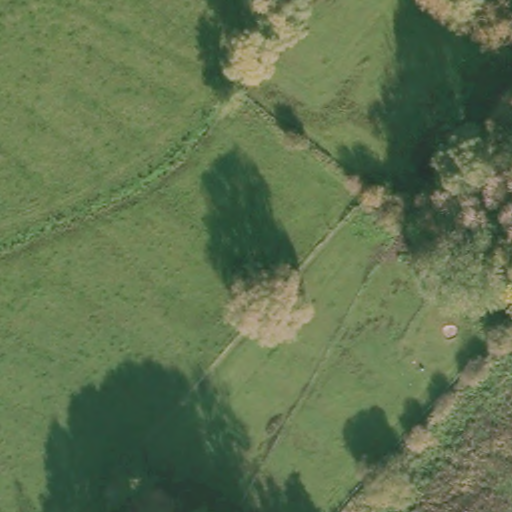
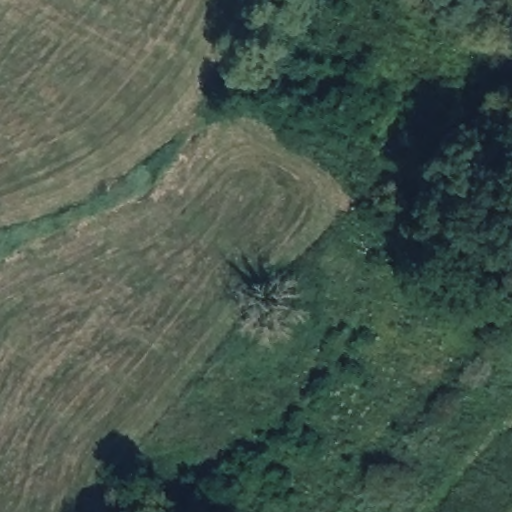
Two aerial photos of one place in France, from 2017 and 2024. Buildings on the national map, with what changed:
unchanged [(454,142),(465,125),(477,133),(466,150),(454,142)]

